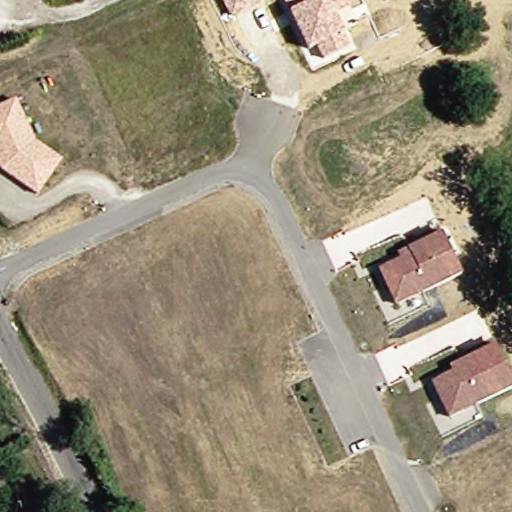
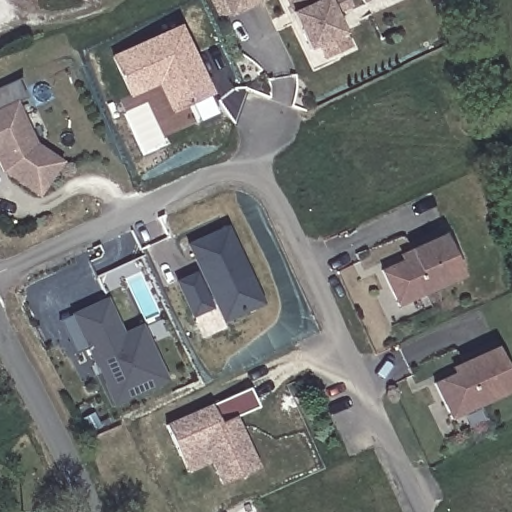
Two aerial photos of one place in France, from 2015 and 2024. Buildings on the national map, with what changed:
unchanged [(231,18),(223,0),(265,0),(266,2),(231,18)]
unchanged [(336,14),(345,33),(351,46),(322,60),(315,46),(307,51),(283,0),(347,0),(351,7),(336,14)]
new [(180,24),(221,109),(199,120),(190,101),(175,108),(161,80),(134,93),(116,55),(180,24)]
unchanged [(0,165),(0,109),(16,102),(34,144),(60,163),(36,197),(6,175),(10,170),(2,164),(0,165)]
new [(226,225),(262,305),(223,322),(186,243),(226,225)]
unchanged [(463,276),(395,308),(377,268),(399,259),(396,255),(442,233),(463,276)]
new [(195,272),(211,309),(191,317),(175,281),(195,272)]
new [(143,324),(152,342),(169,378),(118,403),(109,384),(110,383),(101,364),(99,365),(91,347),(78,353),(62,320),(75,314),(92,306),(109,298),(112,305),(125,333),(143,324)]
unchanged [(512,382),(512,392),(448,420),(432,382),(451,372),(449,367),(495,345),(512,382)]
new [(258,407),(237,416),(259,467),(220,484),(212,463),(188,472),(167,422),(211,403),(249,387),(258,407)]

